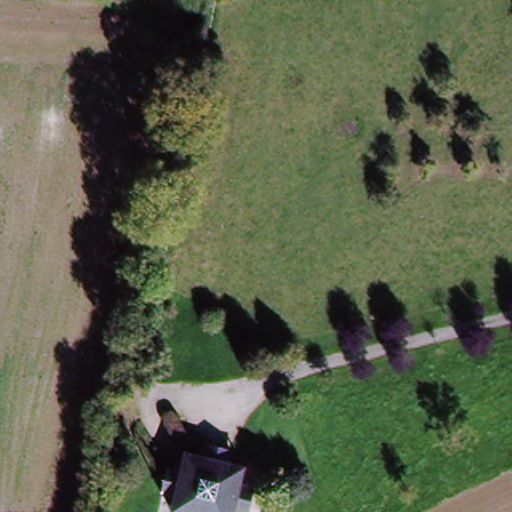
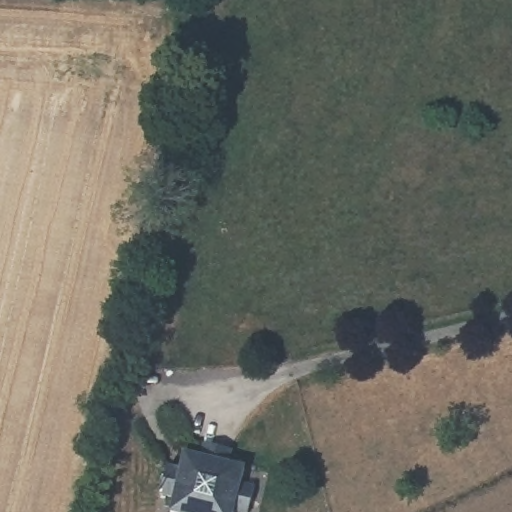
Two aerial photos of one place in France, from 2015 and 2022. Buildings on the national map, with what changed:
unchanged [(242,486),(252,489),(247,512),(171,512),(172,503),(160,501),(167,470),(179,472),(182,458),(198,461),(200,447),(233,455),(230,470),(245,473),(242,486)]

